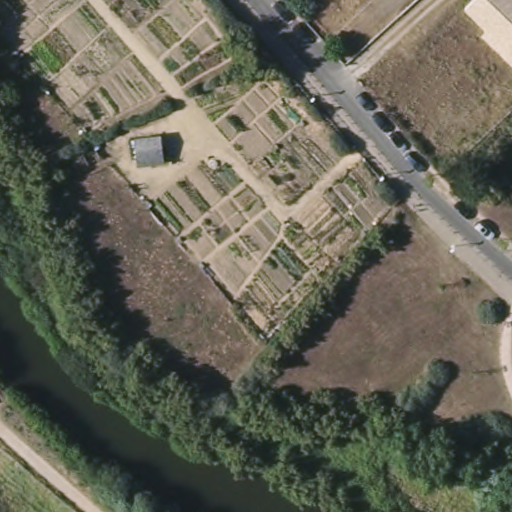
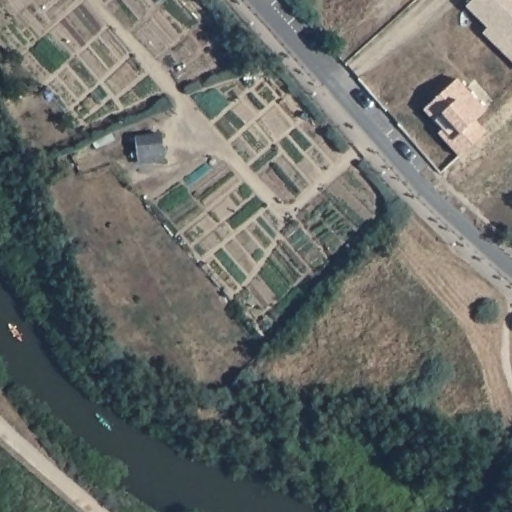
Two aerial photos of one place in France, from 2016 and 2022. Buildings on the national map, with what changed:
unchanged [(461,8),(468,0),(512,0),(512,54),(461,8)]
new [(457,79),(486,110),(475,120),(486,133),(460,156),(438,133),(442,130),(424,109),(457,79)]

